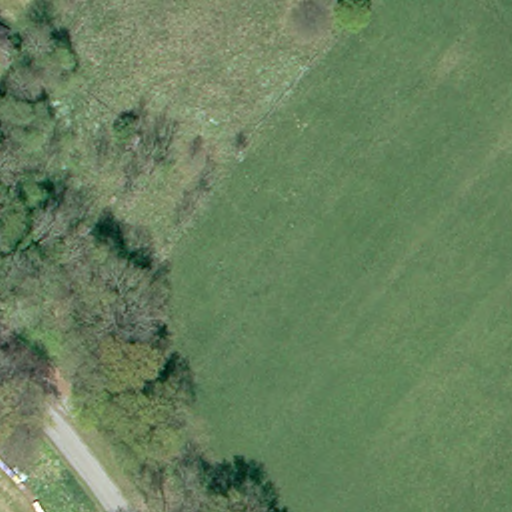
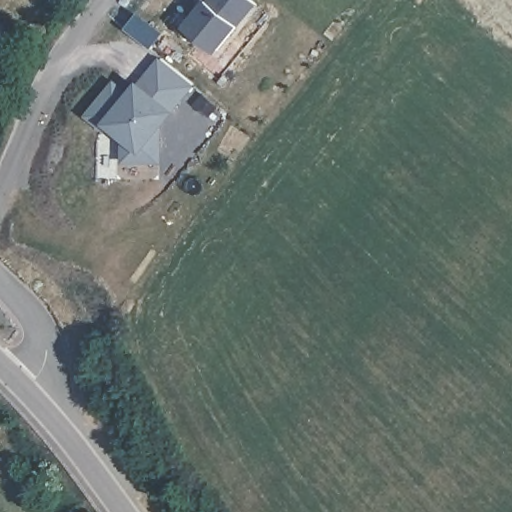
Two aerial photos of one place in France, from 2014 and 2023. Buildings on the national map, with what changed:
new [(257,2),(237,24),(217,51),(183,27),(204,0),(254,0),(257,2)]
unchanged [(10,50),(24,60),(12,79),(0,72),(0,34),(15,44),(10,50)]
new [(194,85),(174,110),(162,126),(161,163),(122,163),(122,137),(105,123),(87,114),(114,80),(132,88),(139,79),(160,56),(194,85)]

